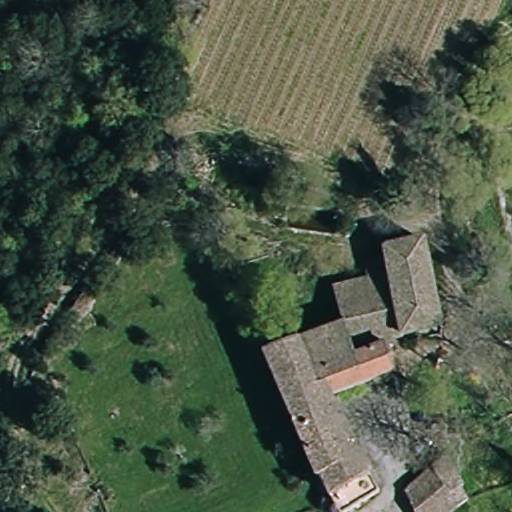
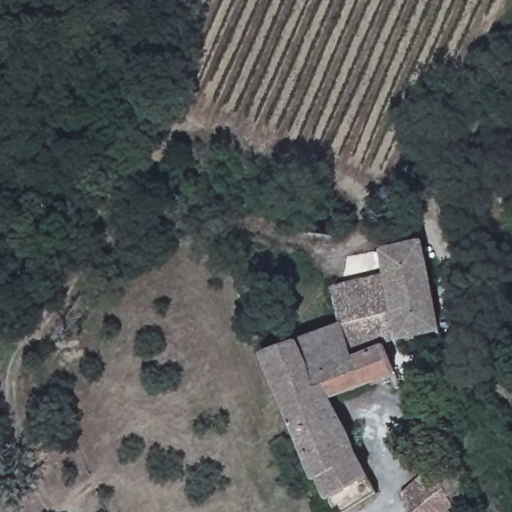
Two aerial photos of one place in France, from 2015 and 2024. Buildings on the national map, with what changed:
unchanged [(438,330),(384,342),(394,371),(333,396),(377,495),(338,512),(334,512),(320,473),(313,476),(261,352),(341,317),(329,288),(368,278),(364,267),(384,262),(380,249),(389,245),(420,240),(438,330)]
unchanged [(459,492),(467,503),(454,512),(411,512),(403,497),(446,461),(462,484),(459,492)]

